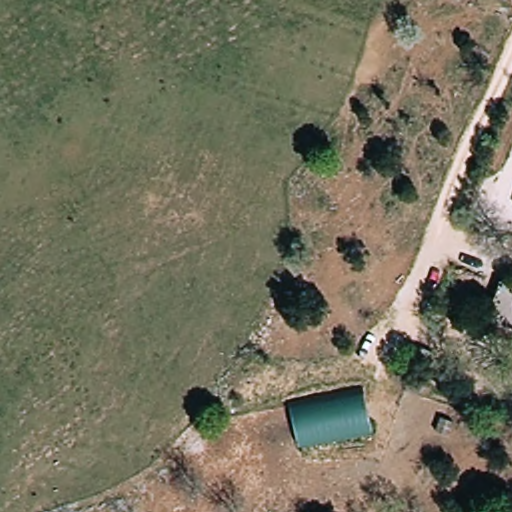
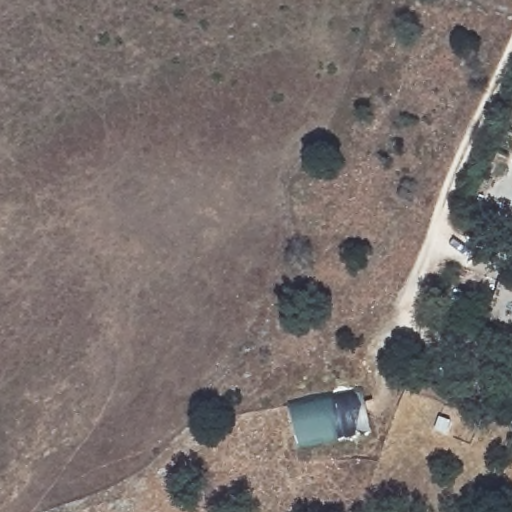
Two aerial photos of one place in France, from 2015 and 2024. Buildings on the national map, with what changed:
unchanged [(491,286),(512,292),(512,328),(484,321),(491,286)]
unchanged [(373,432),(296,448),(287,404),(361,389),(373,432)]

